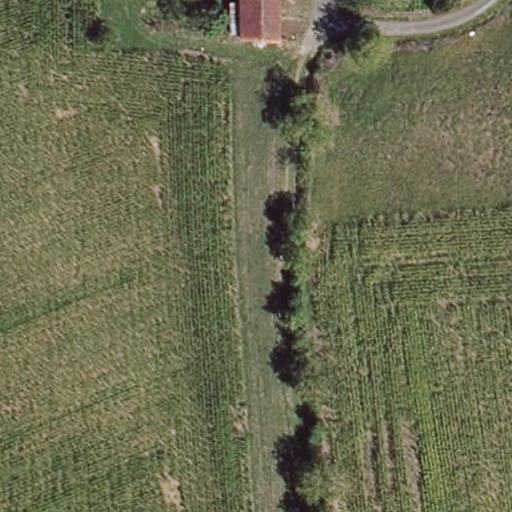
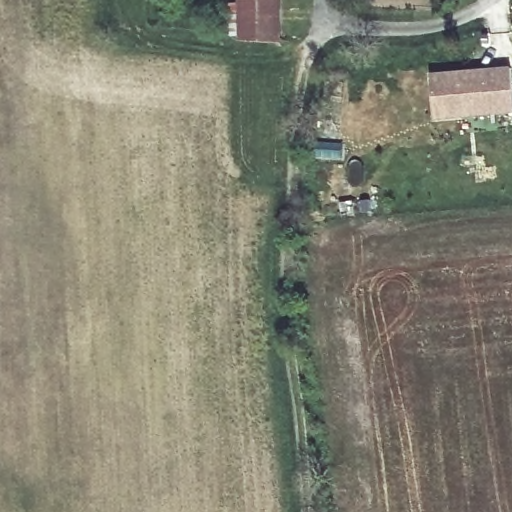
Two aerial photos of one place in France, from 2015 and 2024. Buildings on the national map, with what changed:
unchanged [(237,42),(237,6),(247,5),(247,0),(286,0),(285,43),(237,42)]
new [(512,80),(512,113),(435,119),(430,72),(510,66),(512,80)]

